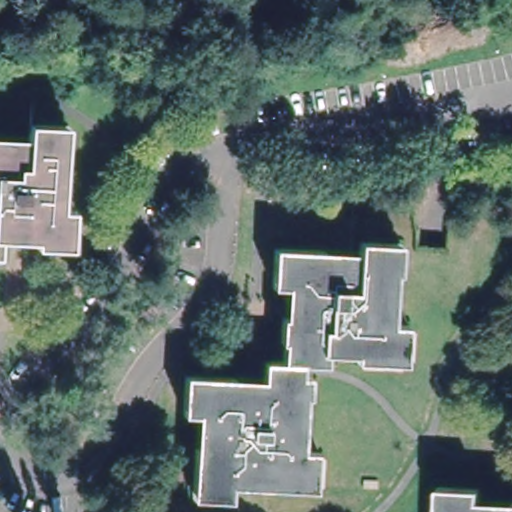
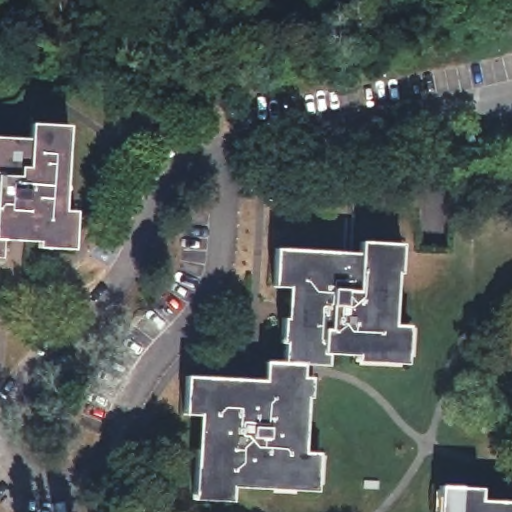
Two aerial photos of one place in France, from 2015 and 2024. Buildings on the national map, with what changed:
unchanged [(34,152),(34,136),(75,137),(76,165),(67,165),(67,184),(73,183),(74,205),(66,205),(65,219),(77,219),(76,261),(40,260),(40,248),(4,248),(4,261),(0,261),(0,151),(34,152)]
unchanged [(324,252),(358,252),(358,235),(401,235),(401,281),(396,281),(396,311),(391,311),(391,332),(410,332),(408,370),(357,370),(357,359),(331,359),(331,368),(304,368),(304,382),(316,382),(316,404),(311,404),(311,427),(303,427),(303,458),(322,458),(322,494),(270,493),(270,484),(236,483),(236,500),(197,499),(197,454),(205,454),(205,418),(186,418),(187,382),(232,382),(232,386),(268,386),(268,357),(279,357),(280,334),(285,334),(285,310),(293,311),(294,280),(274,279),(275,241),(324,242),(324,252)]
unchanged [(442,488),(480,488),(481,508),(512,508),(512,512),(443,512),(442,488)]

